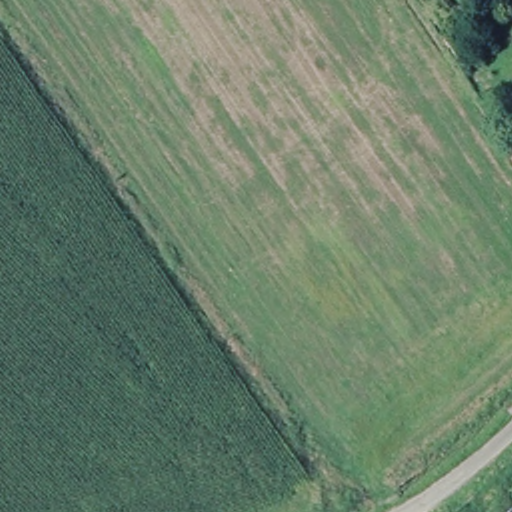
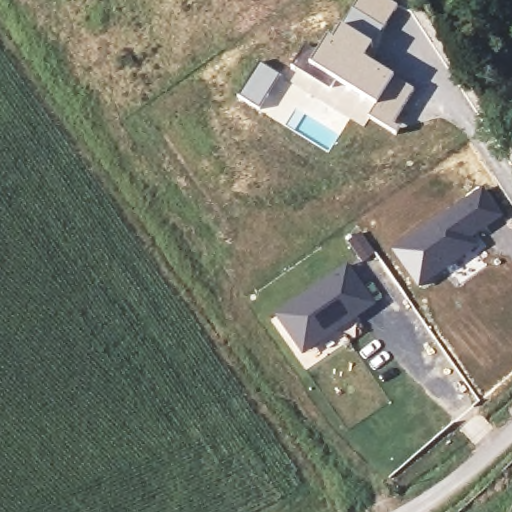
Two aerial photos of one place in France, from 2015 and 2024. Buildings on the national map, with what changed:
new [(317,51),(328,35),(332,37),(357,0),(390,0),(399,5),(366,59),(416,90),(392,132),(369,118),(363,127),(290,82),(296,73),(289,68),(305,44),(317,51)]
new [(259,63),(281,76),(260,111),(237,97),(259,63)]
new [(430,220),(460,204),(485,187),(505,215),(479,234),(488,246),(461,264),(460,265),(457,264),(419,289),(391,247),(430,220)]
new [(360,297),(370,310),(355,322),(336,335),(331,334),(298,357),(274,323),(344,273),(360,297)]

